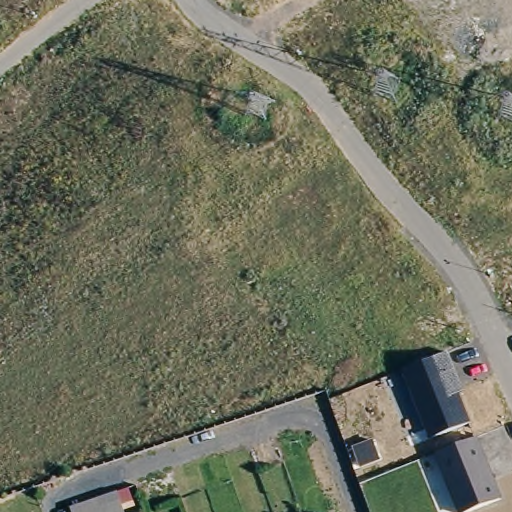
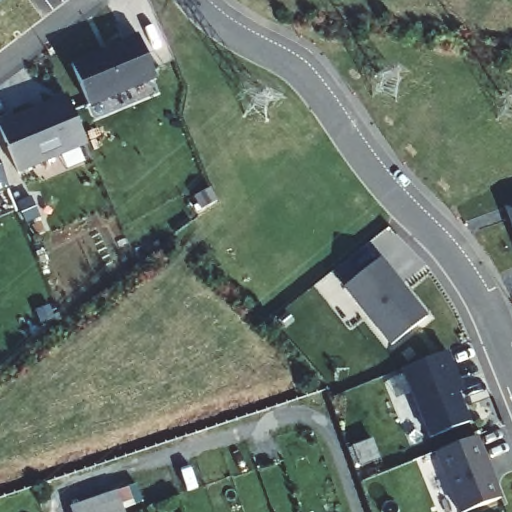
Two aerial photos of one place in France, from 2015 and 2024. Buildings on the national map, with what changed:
new [(71,63),(137,34),(156,80),(89,109),(71,63)]
new [(21,114),(32,109),(32,111),(44,106),(43,104),(65,95),(85,141),(40,160),(42,163),(17,173),(8,154),(9,142),(4,142),(0,134),(0,126),(16,119),(21,114)]
new [(0,191),(0,175),(6,189),(0,191)]
new [(512,199),(512,224),(504,202),(512,199)]
new [(426,314),(390,344),(345,287),(381,258),(426,314)]
unchanged [(428,439),(401,369),(446,353),(470,422),(428,439)]
new [(393,399),(386,380),(401,374),(409,393),(393,399)]
unchanged [(501,497),(465,512),(457,512),(436,454),(477,437),(501,497)]
unchanged [(68,507),(117,491),(125,512),(70,512),(68,507)]

